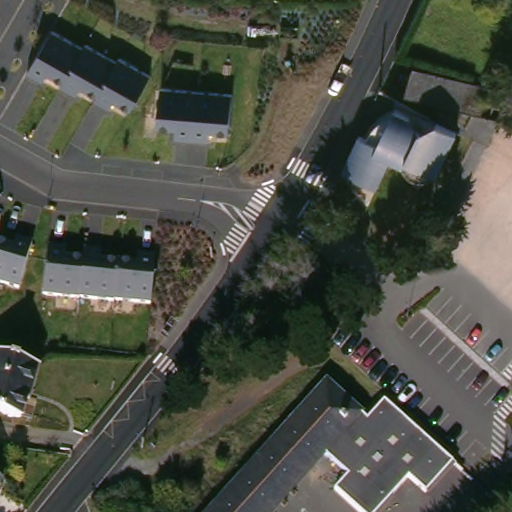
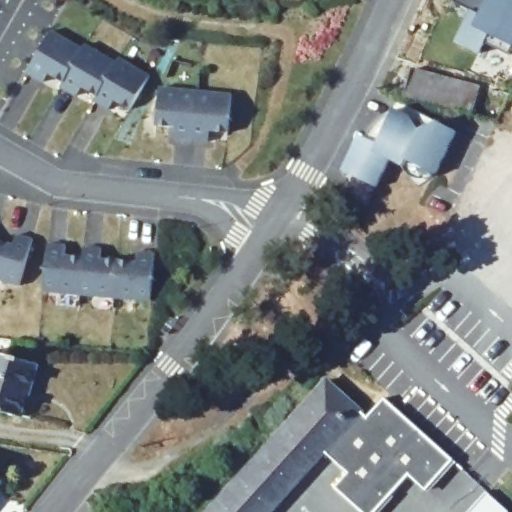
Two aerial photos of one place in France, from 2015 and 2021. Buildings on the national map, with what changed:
new [(452,0),(511,0),(512,1),(512,44),(506,56),(482,43),(477,54),(453,42),(464,20),(467,22),(472,13),(451,2),(452,0)]
unchanged [(86,47),(67,80),(51,71),(46,80),(31,71),(56,29),(86,47)]
unchanged [(89,42),(120,61),(100,94),(85,84),(79,94),(64,85),(67,80),(86,47),(89,42)]
unchanged [(512,55),(512,70),(499,64),(505,51),(512,55)]
unchanged [(153,75),(133,107),(118,98),(112,107),(97,98),(100,94),(120,61),(122,56),(153,75)]
unchanged [(412,63),(509,89),(497,116),(404,90),(412,63)]
unchanged [(198,89),(194,138),(177,137),(178,126),(159,124),(163,86),(198,89)]
unchanged [(234,92),(230,131),(211,129),(210,140),(194,138),(198,89),(234,92)]
unchanged [(362,125),(374,134),(393,100),(459,135),(431,189),(381,160),(367,186),(336,166),(362,125)]
unchanged [(15,287),(0,281),(0,278),(2,272),(0,271),(0,231),(29,241),(15,287)]
unchanged [(41,290),(40,290),(45,242),(63,244),(61,254),(80,256),(76,293),(41,290)]
unchanged [(111,297),(76,293),(80,256),(81,246),(98,247),(96,257),(115,260),(111,297)]
unchanged [(148,288),(146,301),(111,297),(115,260),(133,261),(134,251),(151,252),(148,288)]
unchanged [(35,397),(31,396),(25,415),(0,408),(0,350),(45,363),(35,397)]
unchanged [(372,410),(378,415),(395,397),(464,459),(436,489),(419,473),(384,512),(373,512),(345,486),(358,472),(335,451),(279,512),(215,512),(337,378),(372,410)]
unchanged [(0,482),(0,471),(5,476),(0,482)]
new [(512,507),(512,512),(477,512),(495,492),(512,507)]

